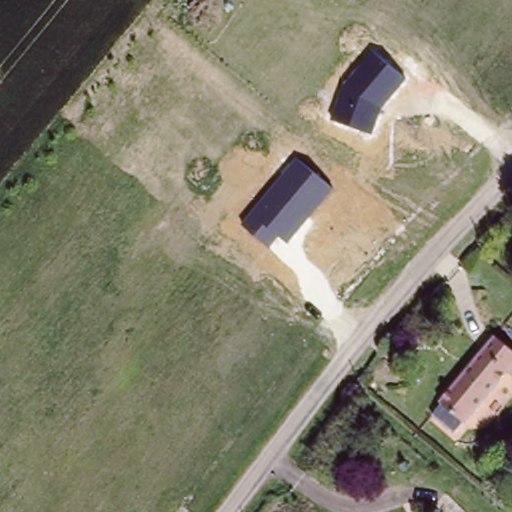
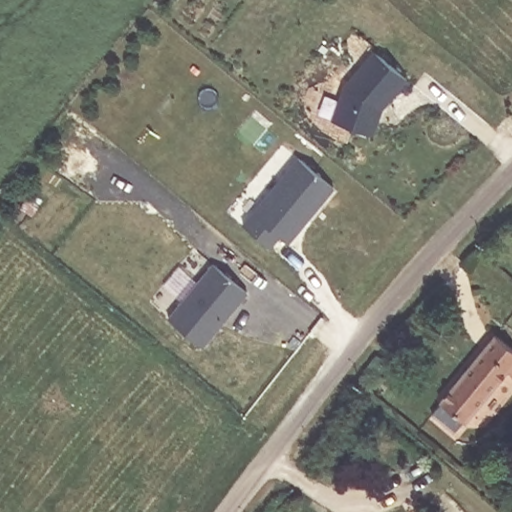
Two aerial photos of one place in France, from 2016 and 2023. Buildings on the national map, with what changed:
unchanged [(332,121),(342,84),(373,50),(408,80),(382,109),(373,134),(332,121)]
unchanged [(242,223),(298,158),(334,189),(289,243),(280,235),(270,247),(242,223)]
new [(169,317),(183,300),(165,284),(180,266),(198,280),(212,264),(247,292),(203,347),(169,317)]
unchanged [(469,419),(467,417),(457,428),(439,412),(447,401),(444,398),(498,333),(512,344),(512,371),(510,369),(469,419)]

